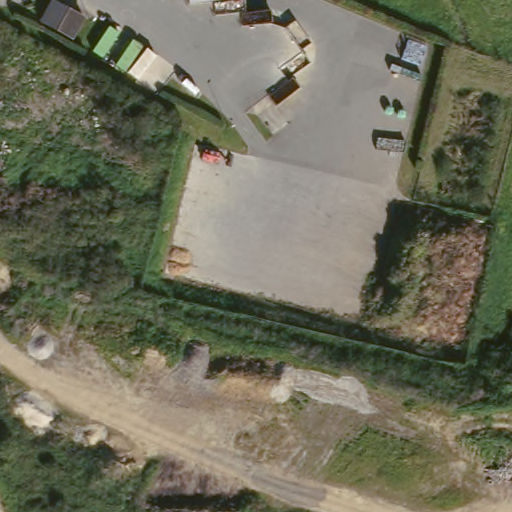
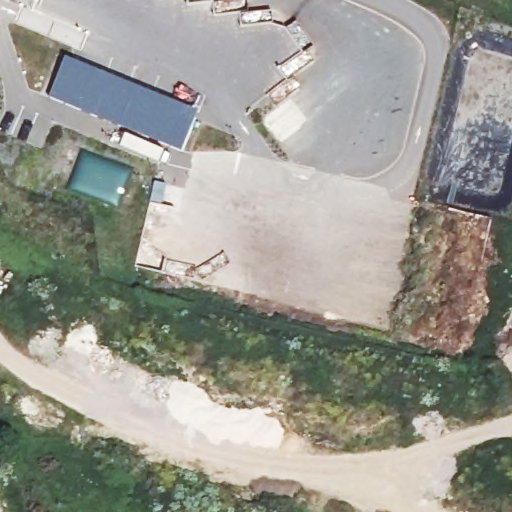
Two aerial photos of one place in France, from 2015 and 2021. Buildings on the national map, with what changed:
demolished [(29,0),(67,0),(69,2),(54,21),(29,0)]
new [(198,111),(181,152),(49,97),(65,57),(198,111)]

